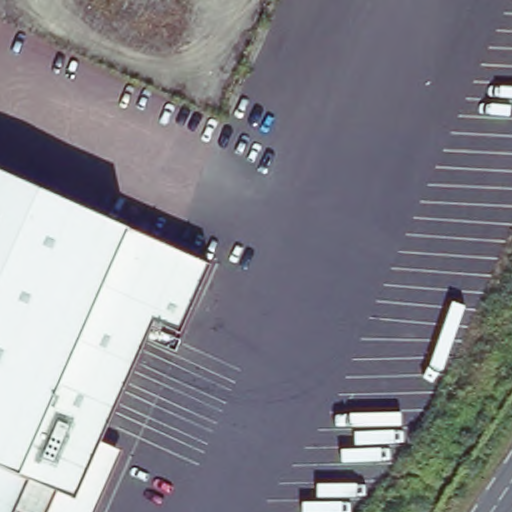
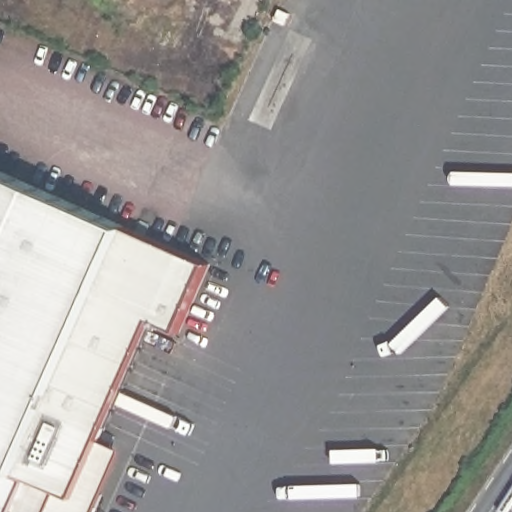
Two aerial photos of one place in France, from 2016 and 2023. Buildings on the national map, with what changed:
unchanged [(177,330),(151,317),(96,440),(118,450),(91,512),(44,512),(60,477),(28,462),(19,481),(0,473),(0,172),(125,227),(206,263),(177,330)]
unchanged [(19,481),(28,462),(60,477),(44,512),(0,512),(0,473),(19,481)]

